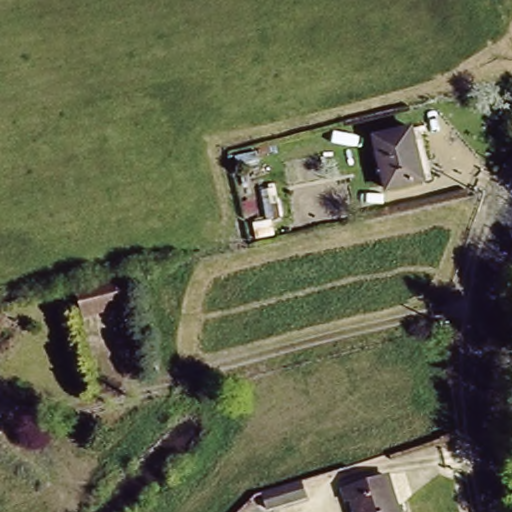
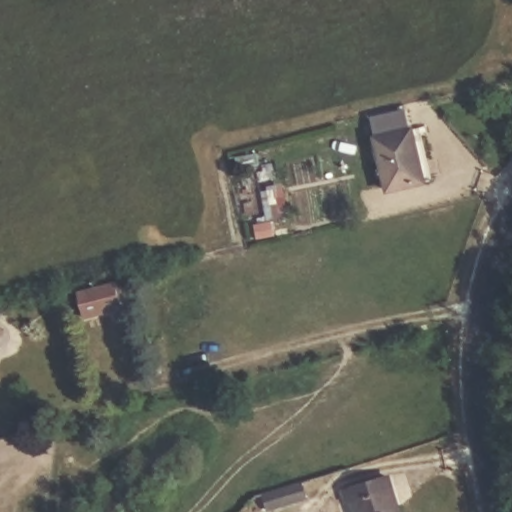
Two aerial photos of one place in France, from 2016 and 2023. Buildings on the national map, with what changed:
unchanged [(373,134),(413,123),(428,181),(388,192),(373,134)]
unchanged [(113,278),(120,304),(82,315),(73,288),(113,278)]
unchanged [(392,483),(396,482),(405,512),(359,512),(354,494),(350,496),(345,481),(387,468),(392,483)]
unchanged [(305,473),(310,489),(270,501),(266,485),(305,473)]

